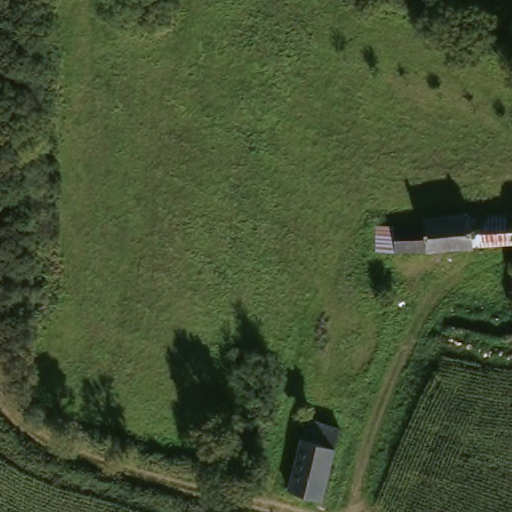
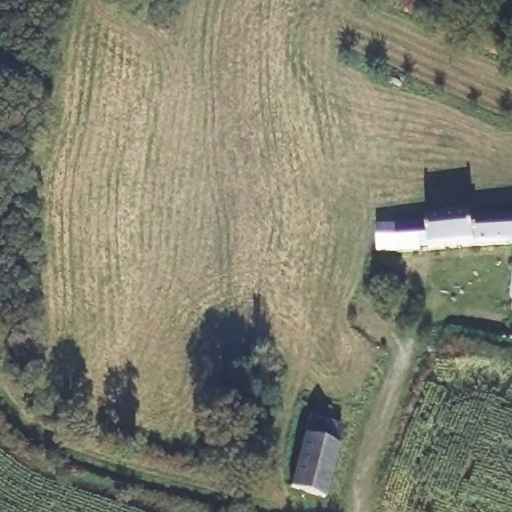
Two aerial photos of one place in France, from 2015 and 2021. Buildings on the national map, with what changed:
unchanged [(425,222),(470,218),(470,224),(472,251),(427,255),(425,227),(425,222)]
unchanged [(512,220),(512,248),(472,251),(470,224),(512,220)]
unchanged [(402,229),(425,227),(427,255),(377,259),(375,231),(402,229)]
unchanged [(510,322),(505,273),(512,272),(512,322),(510,322)]
unchanged [(295,465),(307,417),(335,424),(325,472),(319,498),(290,489),(295,465)]

